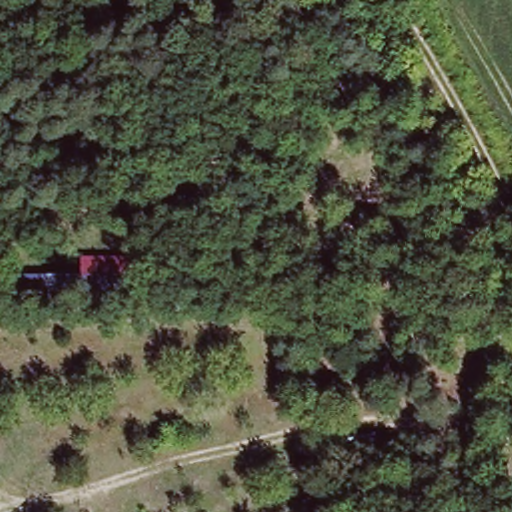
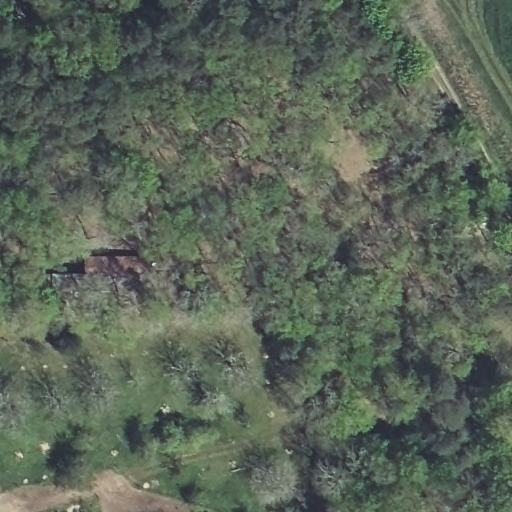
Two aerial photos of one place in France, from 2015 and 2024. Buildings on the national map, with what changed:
unchanged [(145,253),(146,292),(83,296),(81,257),(145,253)]

